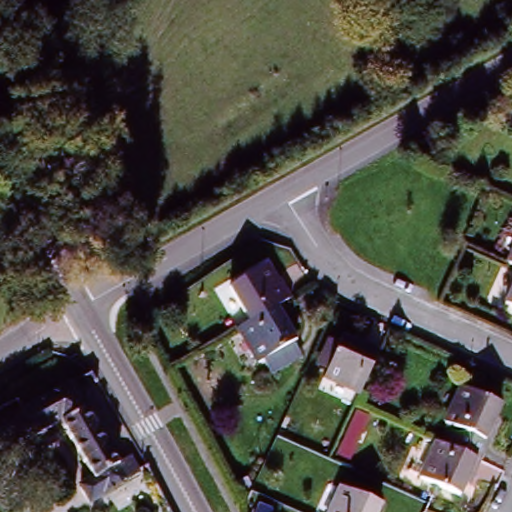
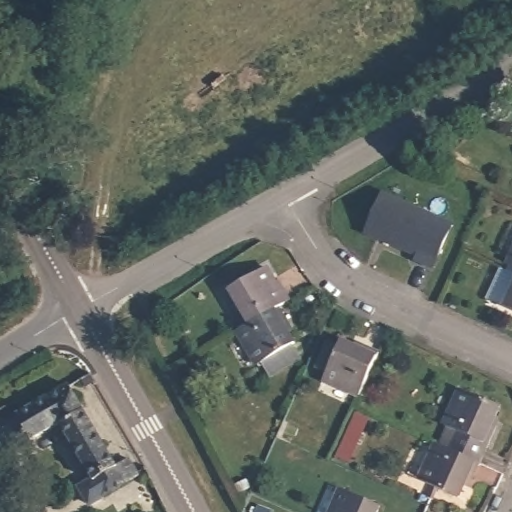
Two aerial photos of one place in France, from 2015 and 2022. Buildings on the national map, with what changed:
new [(454,224),(436,270),(414,263),(417,256),(364,234),(381,194),(454,224)]
unchanged [(512,244),(512,270),(503,266),(512,244)]
unchanged [(229,291),(266,271),(276,287),(282,283),(293,303),(279,311),(249,327),(229,291)]
unchanged [(501,307),(512,281),(512,312),(501,307)]
unchanged [(266,379),(259,368),(256,369),(237,334),(249,327),(279,311),(289,329),(284,332),(294,349),(291,351),(297,362),(266,379)]
unchanged [(379,356),(359,401),(324,384),(327,376),(319,372),(331,347),(339,351),(341,346),(358,354),(361,347),(379,356)]
unchanged [(62,425),(31,442),(21,422),(18,415),(35,406),(71,386),(116,466),(93,479),(62,425)]
unchanged [(452,432),(443,428),(459,394),(499,411),(489,430),(496,433),(479,468),(444,452),(452,432)]
unchanged [(0,458),(0,433),(21,422),(31,442),(0,458)]
unchanged [(433,447),(444,452),(479,468),(471,485),(464,482),(457,499),(418,481),(433,447)]
unchanged [(126,461),(129,459),(139,478),(89,507),(78,488),(93,479),(116,466),(126,461)]
unchanged [(339,492),(376,509),(375,512),(330,512),(339,492)]

